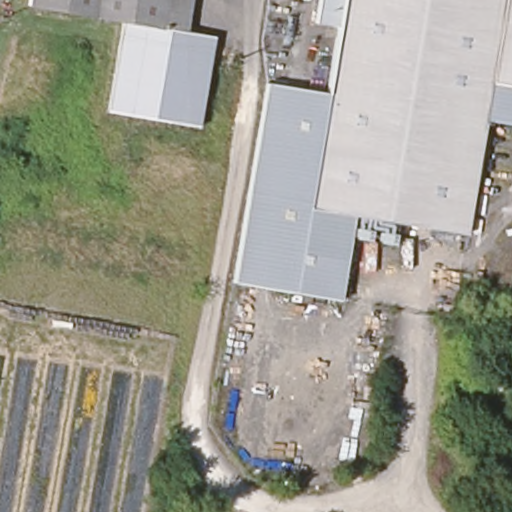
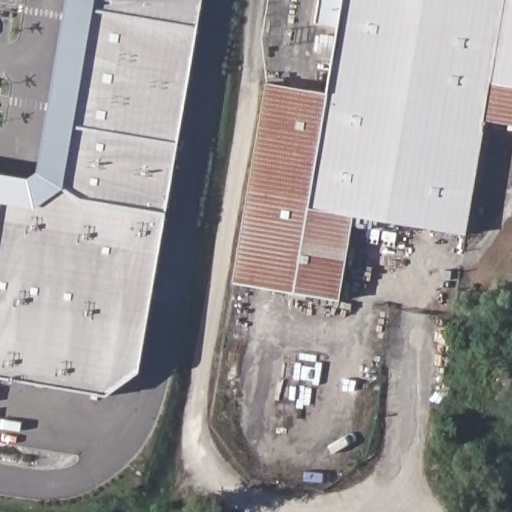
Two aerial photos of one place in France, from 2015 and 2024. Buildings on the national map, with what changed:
new [(127,362),(95,385),(0,369),(0,189),(22,193),(24,191),(17,182),(36,168),(40,145),(52,146),(73,24),(61,22),(65,0),(188,0),(127,362)]
demolished [(166,7),(176,7),(173,27),(213,34),(198,127),(108,111),(126,18),(34,3),(35,0),(168,0),(166,7)]
unchanged [(408,211),(246,197),(267,85),(331,95),(342,31),(319,27),(323,0),(444,0),(408,211)]
unchanged [(444,0),(512,0),(512,84),(493,80),(486,122),(466,238),(406,228),(408,211),(444,0)]
new [(73,24),(52,146),(40,145),(62,22),(73,24)]
unchanged [(512,84),(512,127),(486,122),(493,80),(512,84)]
new [(24,191),(21,193),(0,189),(0,179),(17,182),(24,191)]
unchanged [(408,211),(406,228),(355,219),(340,305),(230,285),(246,197),(408,211)]

